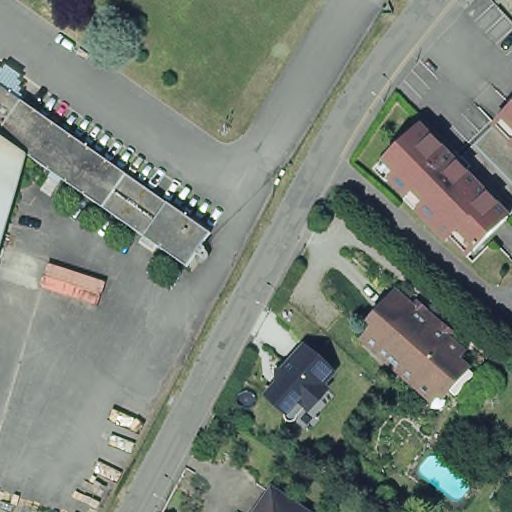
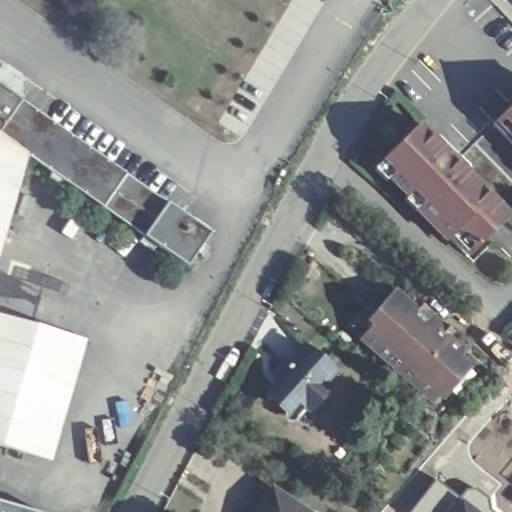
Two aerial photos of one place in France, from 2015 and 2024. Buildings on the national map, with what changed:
unchanged [(187,261),(62,174),(56,182),(47,176),(53,167),(27,150),(0,244),(0,81),(210,228),(187,261)]
unchanged [(512,111),(512,120),(507,115),(512,111)]
unchanged [(512,214),(480,180),(460,161),(507,115),(512,120),(512,214)]
unchanged [(463,229),(453,238),(452,240),(422,210),(421,209),(428,201),(418,190),(412,196),(412,195),(395,177),(394,177),(400,172),(388,160),(425,125),(460,161),(480,180),(512,214),(512,217),(482,247),(463,229)]
unchanged [(457,358),(474,374),(455,395),(445,386),(432,400),(392,365),(363,339),(375,325),(370,321),(395,291),(413,307),(419,301),(435,315),(452,330),(447,337),(463,351),(457,358)]
new [(52,461),(0,446),(0,314),(86,340),(52,461)]
unchanged [(288,408),(268,390),(277,380),(277,375),(275,364),(285,363),(304,341),(333,367),(322,380),(327,383),(308,403),(297,415),(288,408)]
new [(458,496),(447,512),(408,512),(435,478),(458,496)]
new [(467,485),(488,500),(496,512),(447,512),(458,496),(467,485)]
unchanged [(310,512),(263,512),(277,490),(310,512)]

